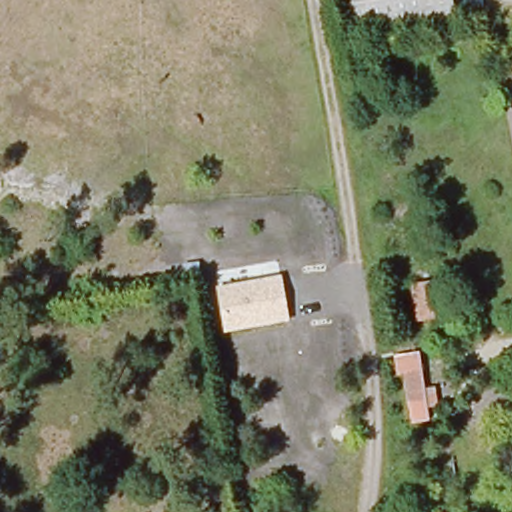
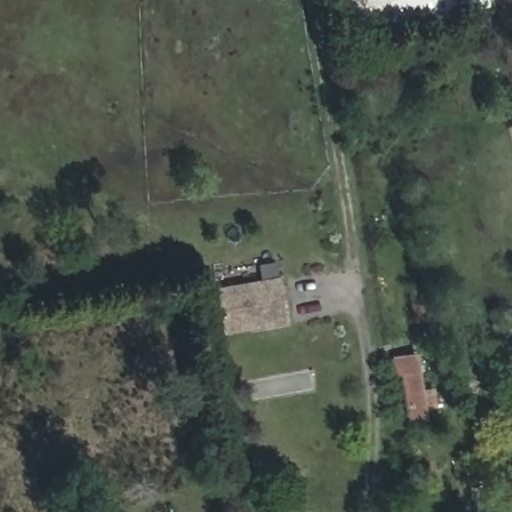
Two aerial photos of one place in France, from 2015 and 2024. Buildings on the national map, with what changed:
unchanged [(455,11),(355,29),(350,0),(452,0),(455,11)]
unchanged [(290,321),(224,333),(215,285),(281,275),(290,321)]
unchanged [(432,318),(426,283),(445,280),(452,314),(432,318)]
unchanged [(410,408),(401,357),(418,354),(427,405),(410,408)]
unchanged [(460,512),(444,512),(460,509),(460,512)]

